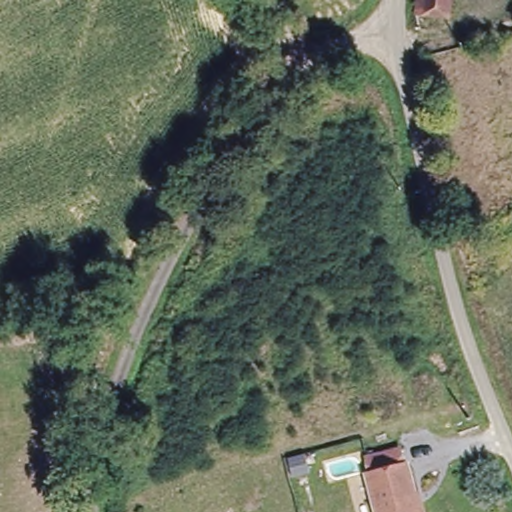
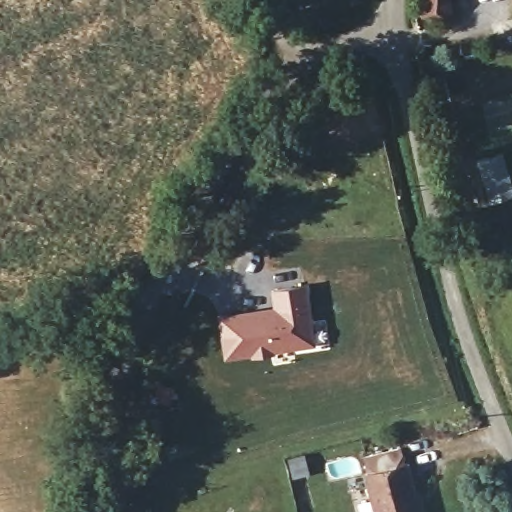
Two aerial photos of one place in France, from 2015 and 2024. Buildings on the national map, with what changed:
unchanged [(450,0),(447,25),(412,16),(413,0),(450,0)]
unchanged [(512,22),(512,39),(494,44),(492,27),(512,22)]
new [(272,304),(270,288),(308,282),(313,320),(325,320),(329,345),(223,360),(219,314),(272,304)]
unchanged [(414,497),(411,498),(414,512),(373,512),(364,470),(367,468),(363,453),(398,445),(402,460),(405,460),(414,497)]
unchanged [(308,471),(293,475),(289,457),(304,454),(308,471)]

